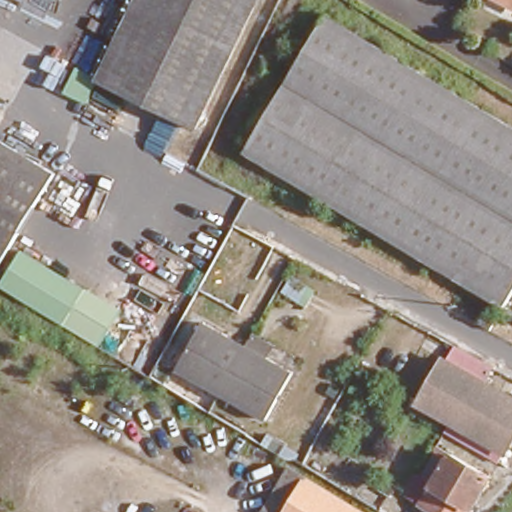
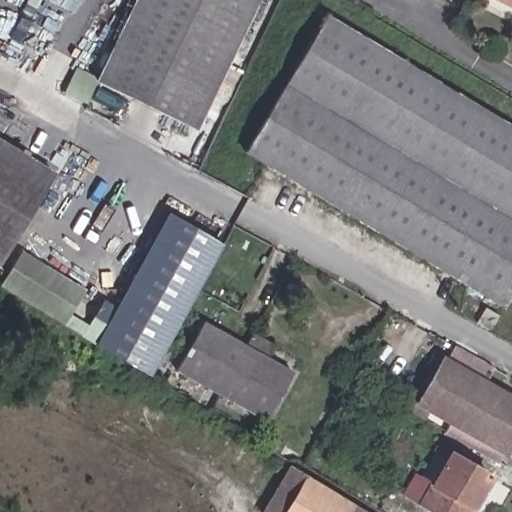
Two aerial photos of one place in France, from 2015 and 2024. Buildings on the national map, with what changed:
unchanged [(94,91),(138,0),(255,0),(189,136),(94,91)]
unchanged [(485,0),(512,0),(512,14),(509,13),(485,0)]
unchanged [(247,150),(287,82),(326,16),(512,127),(512,296),(506,305),(247,150)]
unchanged [(0,258),(0,156),(44,183),(0,258)]
new [(168,212),(222,245),(171,337),(117,306),(168,212)]
new [(21,251),(84,290),(70,314),(89,325),(105,299),(171,337),(150,376),(0,286),(0,285),(21,251)]
unchanged [(492,327),(478,319),(487,305),(501,313),(492,327)]
unchanged [(200,330),(281,377),(257,421),(175,372),(200,330)]
unchanged [(512,396),(512,442),(505,453),(417,403),(427,387),(410,377),(427,347),(512,396)]
unchanged [(278,512),(259,512),(271,490),(232,472),(241,451),(285,474),(290,467),(295,470),(301,473),(278,512)]
unchanged [(476,512),(431,512),(423,507),(432,492),(423,487),(437,465),(445,470),(449,464),(454,456),(495,481),(476,512)]
unchanged [(366,512),(278,512),(301,473),(366,512)]

